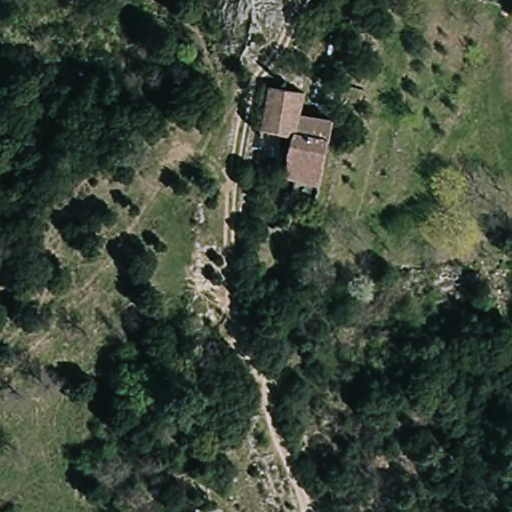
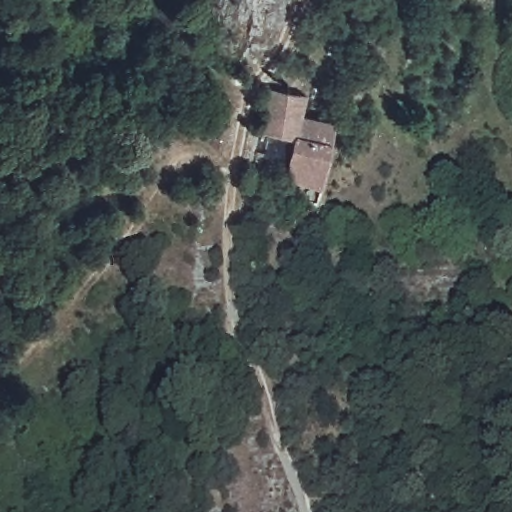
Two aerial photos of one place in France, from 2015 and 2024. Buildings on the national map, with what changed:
unchanged [(305,92),(301,112),(334,119),(314,204),(291,200),(296,182),(283,180),(292,138),(261,131),(269,86),(305,92)]

